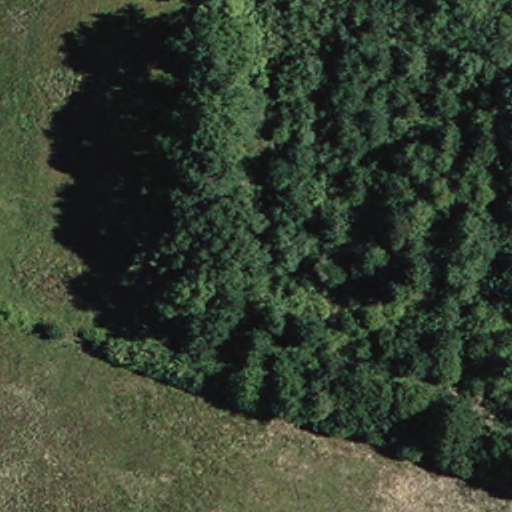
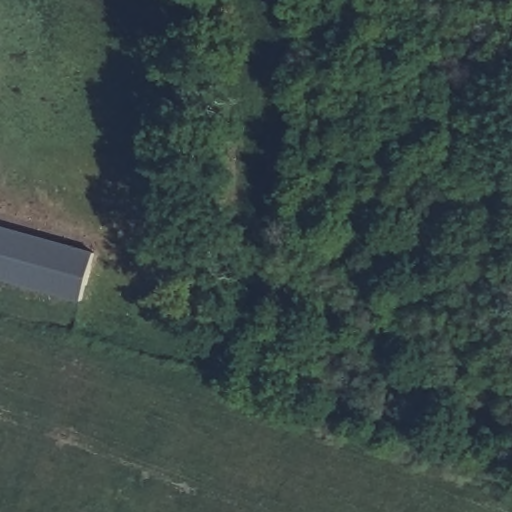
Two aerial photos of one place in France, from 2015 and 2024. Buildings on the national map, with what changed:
new [(95,250),(82,298),(0,276),(0,225),(95,250)]

